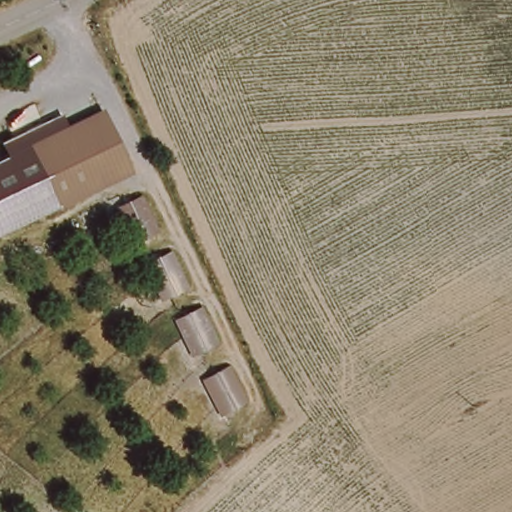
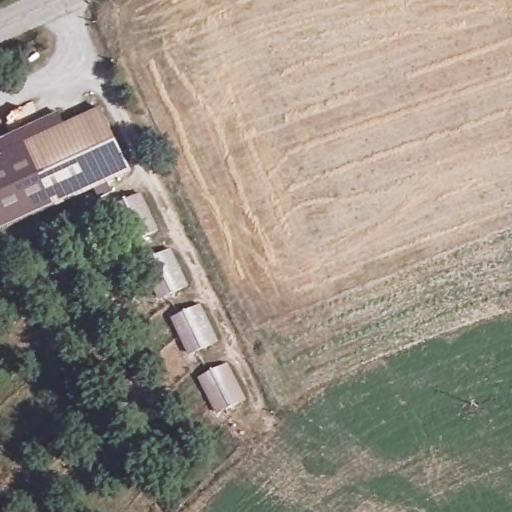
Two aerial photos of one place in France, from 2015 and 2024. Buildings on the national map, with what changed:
unchanged [(60,209),(59,206),(0,234),(0,158),(6,155),(0,143),(0,142),(61,112),(67,125),(104,108),(135,175),(60,209)]
unchanged [(134,236),(117,204),(142,192),(158,224),(134,236)]
unchanged [(166,296),(149,262),(173,251),(189,285),(166,296)]
unchanged [(197,357),(180,320),(204,310),(221,345),(197,357)]
unchanged [(222,405),(205,370),(228,358),(245,392),(222,405)]

